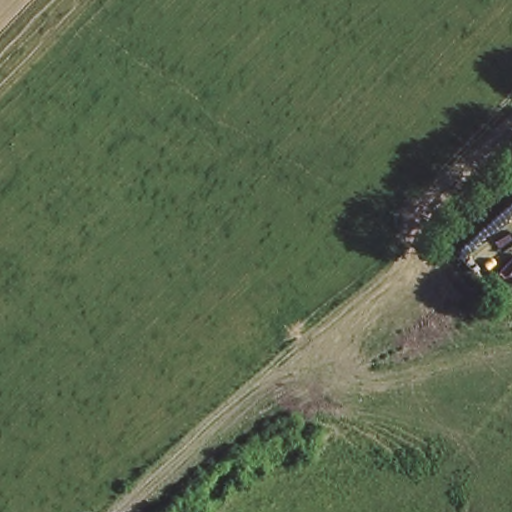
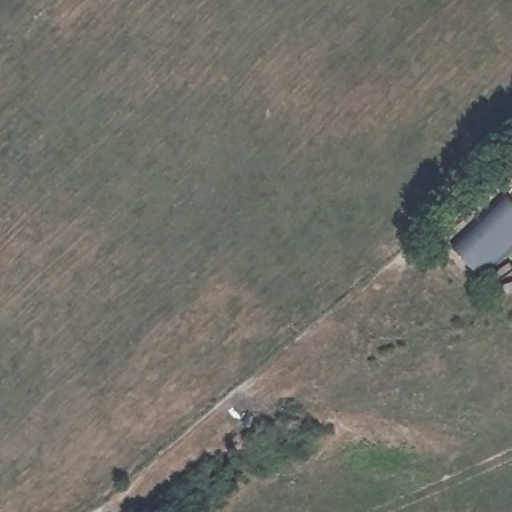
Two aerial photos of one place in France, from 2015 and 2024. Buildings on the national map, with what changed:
new [(512,199),(512,249),(482,279),(447,242),(502,190),(512,199)]

